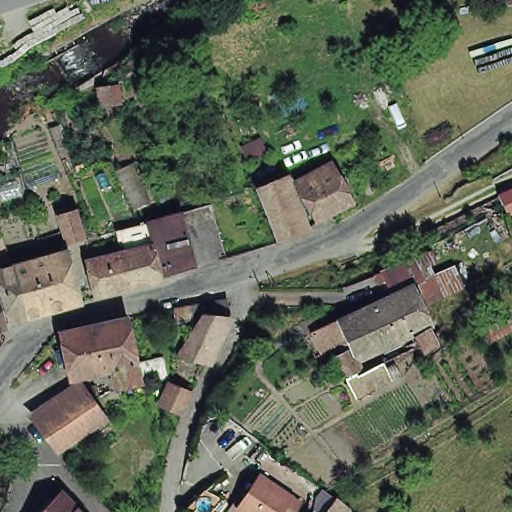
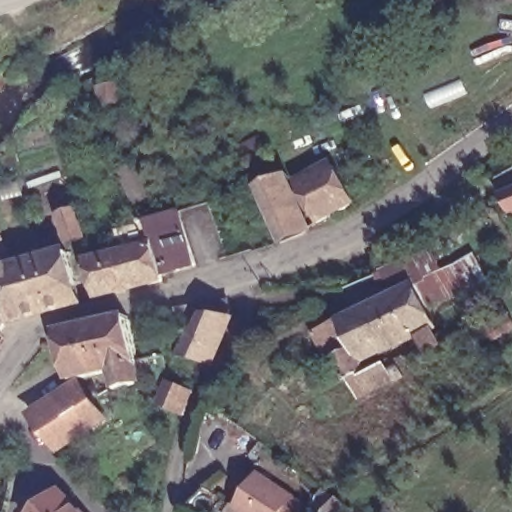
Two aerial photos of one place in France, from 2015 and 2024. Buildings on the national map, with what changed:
unchanged [(502,0),(512,0),(512,2),(503,4),(502,0)]
unchanged [(317,226),(298,190),(335,169),(355,205),(317,226)]
unchanged [(280,246),(257,190),(281,180),(304,237),(280,246)]
unchanged [(512,197),(512,211),(506,199),(512,197)]
unchanged [(68,242),(60,212),(75,207),(85,236),(68,242)]
unchanged [(225,258),(225,256),(198,264),(197,262),(182,216),(211,207),(228,257),(225,258)]
unchanged [(161,272),(149,225),(182,216),(197,262),(161,272)]
unchanged [(95,296),(85,259),(124,249),(121,234),(149,225),(161,272),(163,278),(95,296)]
unchanged [(0,265),(0,234),(10,259),(0,265)]
unchanged [(4,289),(0,278),(0,269),(15,265),(67,250),(80,299),(27,315),(11,319),(3,293),(4,289)]
unchanged [(413,295),(393,304),(383,281),(424,261),(445,305),(422,315),(413,295)]
unchanged [(431,332),(385,355),(366,317),(393,304),(413,295),(422,315),(431,332)]
unchanged [(212,367),(180,364),(200,324),(179,326),(180,310),(208,306),(233,302),(235,320),(212,367)]
unchanged [(0,328),(0,308),(6,323),(0,328)]
unchanged [(357,368),(362,377),(342,386),(332,365),(351,356),(348,348),(321,361),(313,342),(366,317),(385,355),(357,368)]
unchanged [(167,380),(142,386),(121,391),(115,392),(110,374),(105,375),(95,326),(127,319),(137,365),(162,359),(167,380)]
unchanged [(95,326),(105,375),(70,383),(59,335),(95,326)]
unchanged [(85,391),(96,386),(103,394),(92,402),(108,421),(58,455),(36,424),(85,391)]
unchanged [(163,409),(172,386),(193,394),(183,418),(163,409)]
unchanged [(243,510),(265,479),(295,499),(286,512),(245,512),(243,510)]
unchanged [(76,484),(102,512),(47,512),(76,484)]

